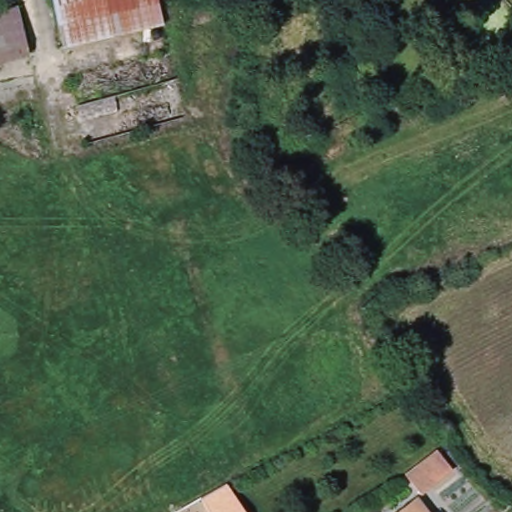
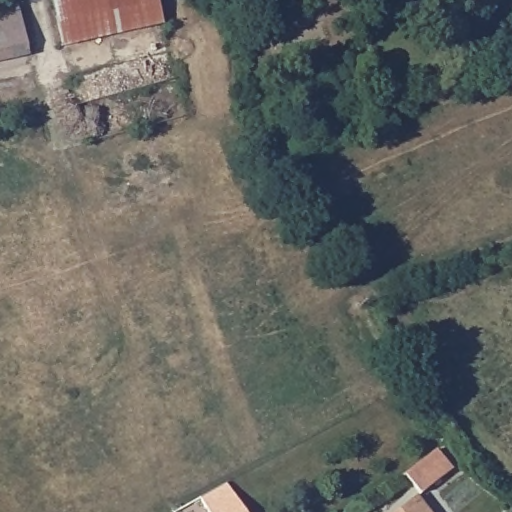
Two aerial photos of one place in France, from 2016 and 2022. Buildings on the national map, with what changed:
unchanged [(63,51),(52,4),(52,0),(157,0),(163,28),(63,51)]
unchanged [(28,49),(0,55),(0,14),(21,10),(28,49)]
unchanged [(452,476),(421,501),(407,484),(438,459),(452,476)]
unchanged [(199,498),(227,483),(246,512),(207,512),(199,498)]
unchanged [(423,512),(407,512),(416,505),(423,512)]

